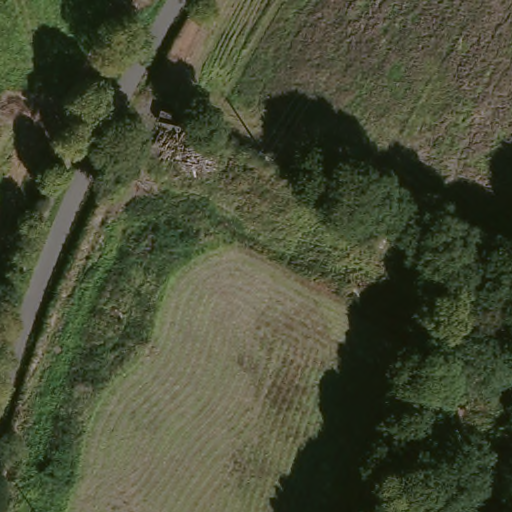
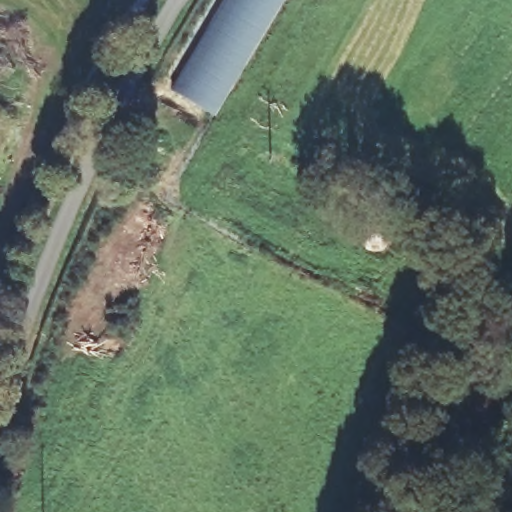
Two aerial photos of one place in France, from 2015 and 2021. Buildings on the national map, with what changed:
new [(214,116),(172,90),(225,0),(283,0),(214,116)]

